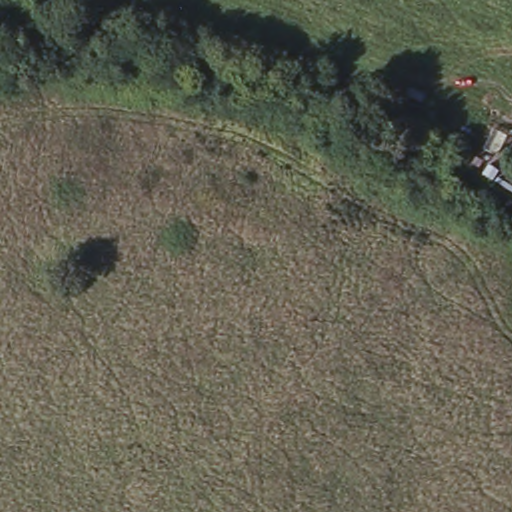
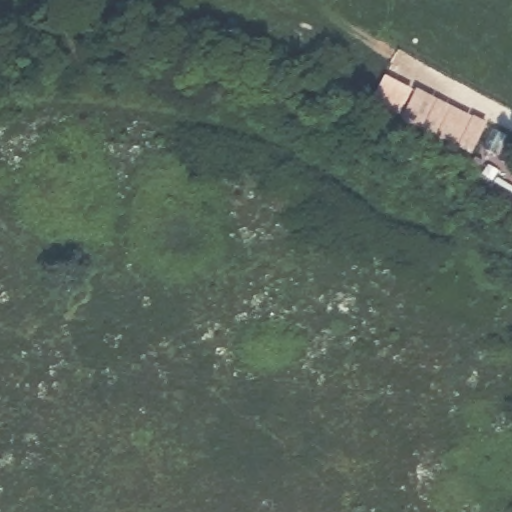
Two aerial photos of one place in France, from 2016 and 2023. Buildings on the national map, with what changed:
new [(411,85),(400,108),(376,96),(386,71),(411,85)]
new [(418,84),(487,121),(472,150),(404,112),(418,84)]

